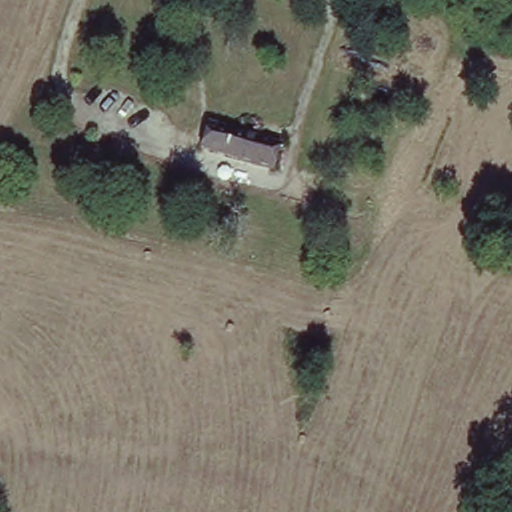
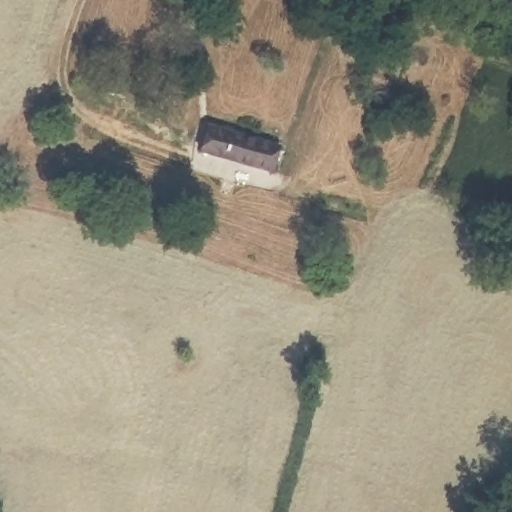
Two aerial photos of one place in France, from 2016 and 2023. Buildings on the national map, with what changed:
unchanged [(282,154),(273,177),(207,152),(214,130),(282,154)]

